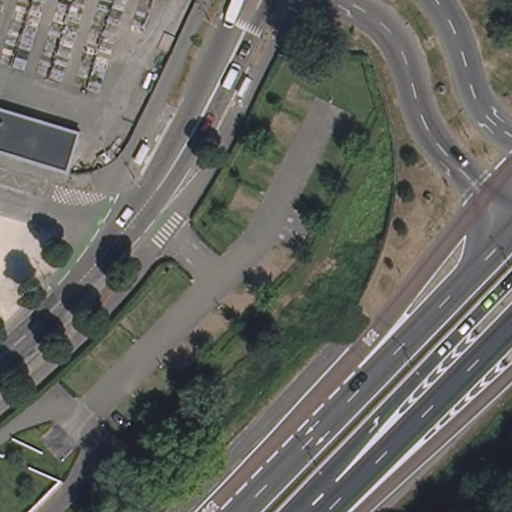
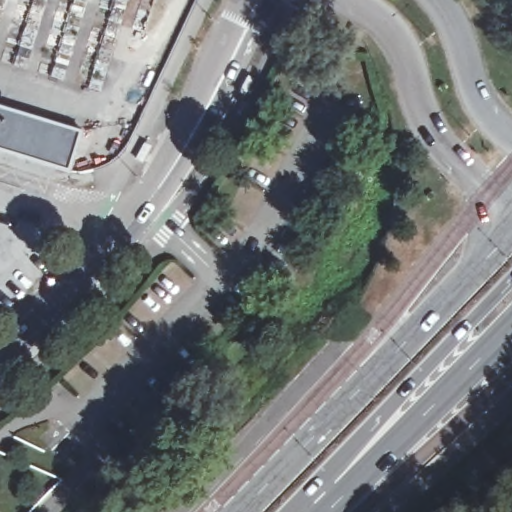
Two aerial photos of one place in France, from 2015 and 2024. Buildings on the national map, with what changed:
unchanged [(68,166),(60,165),(43,159),(0,146),(0,102),(81,127),(68,166)]

